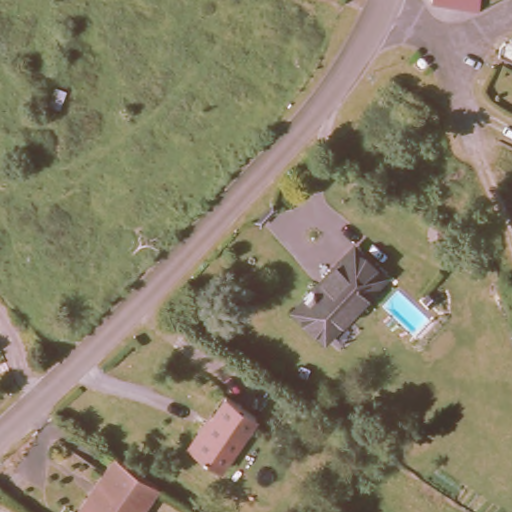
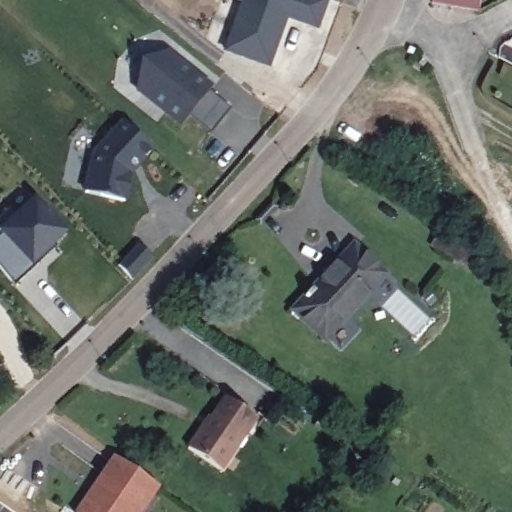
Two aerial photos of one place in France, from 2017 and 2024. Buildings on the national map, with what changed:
new [(240,3),(233,0),(329,0),(317,30),(287,19),(270,68),(223,51),(240,3)]
unchanged [(468,8),(436,4),(429,2),(429,0),(477,0),(476,7),(468,8)]
new [(232,109),(212,134),(189,116),(182,125),(144,95),(139,84),(142,71),(150,60),(162,55),(175,58),(212,88),(210,91),(232,109)]
demolished [(442,89),(399,142),(363,117),(400,61),(442,89)]
new [(152,148),(142,159),(139,159),(132,167),(124,200),(85,191),(94,153),(123,121),(152,148)]
new [(37,200),(67,237),(54,247),(56,250),(13,284),(0,268),(0,235),(2,233),(0,231),(0,218),(12,208),(17,216),(37,200)]
new [(153,257),(132,280),(118,266),(140,244),(153,257)]
unchanged [(356,252),(385,276),(327,337),(299,310),(356,252)]
demolished [(512,438),(492,444),(472,390),(512,379),(512,438)]
unchanged [(185,449),(200,425),(204,428),(224,399),(255,420),(218,472),(185,449)]
unchanged [(117,459),(160,489),(143,512),(81,512),(117,459)]

